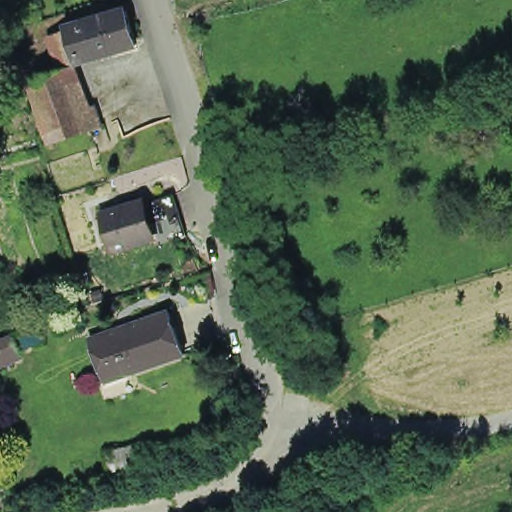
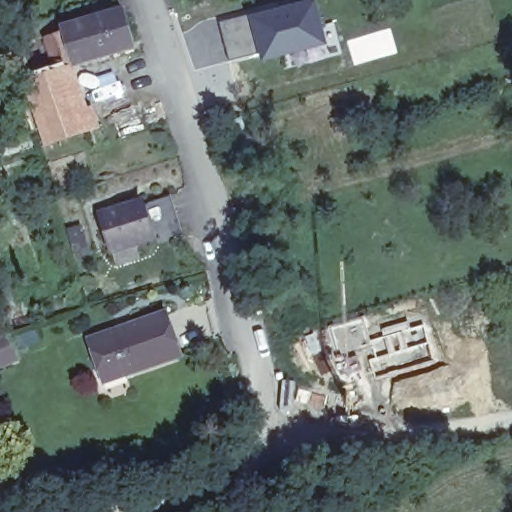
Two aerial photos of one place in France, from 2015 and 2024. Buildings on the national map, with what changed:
new [(313,0),(315,0),(325,47),(259,65),(256,55),(229,62),(228,62),(226,51),(219,25),(313,0)]
unchanged [(47,37),(63,32),(62,29),(122,11),(133,47),(74,66),(66,69),(86,134),(48,146),(28,82),(58,72),(47,37)]
unchanged [(153,234),(148,236),(138,202),(168,192),(181,235),(156,242),(153,234)]
unchanged [(148,238),(109,250),(98,211),(137,200),(138,202),(148,236),(148,238)]
unchanged [(83,340),(163,312),(177,356),(122,375),(119,366),(95,374),(83,340)]
unchanged [(18,360),(0,367),(0,347),(12,342),(18,360)]

